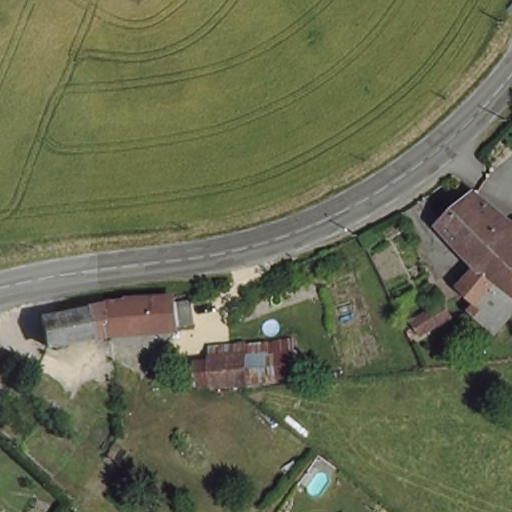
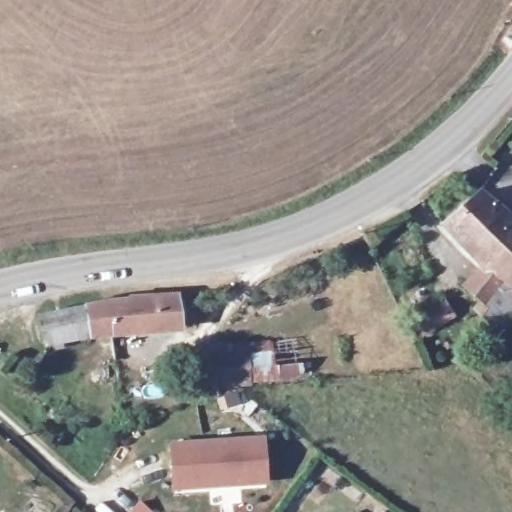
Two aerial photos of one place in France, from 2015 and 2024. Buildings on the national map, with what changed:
unchanged [(485,314),(495,301),(468,283),(491,255),(476,243),(466,255),(432,228),(441,215),(465,189),(476,197),(485,186),(512,209),(512,332),(485,314)]
unchanged [(124,300),(182,295),(185,332),(95,343),(42,352),(36,317),(124,300)]
unchanged [(414,325),(435,305),(444,315),(423,335),(414,325)]
unchanged [(292,340),(298,378),(192,390),(191,363),(208,362),(206,350),(292,340)]
new [(266,485),(172,491),(167,443),(264,436),(266,485)]

